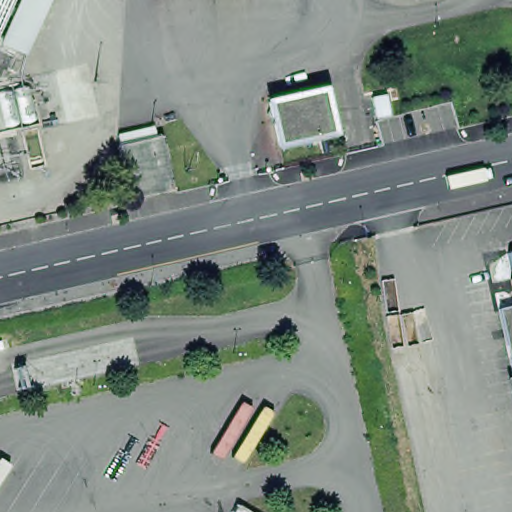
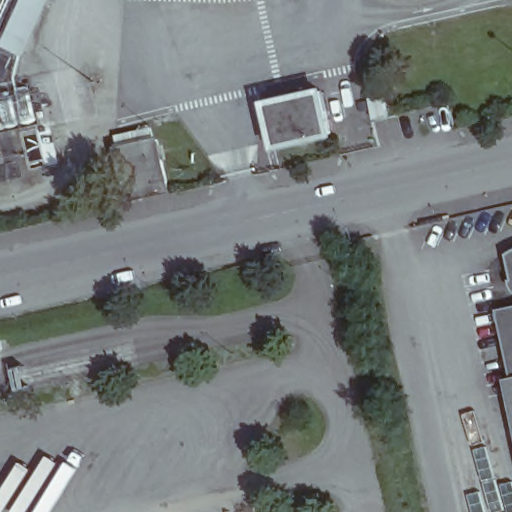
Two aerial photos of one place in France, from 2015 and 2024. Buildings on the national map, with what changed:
unchanged [(0,41),(0,39),(18,0),(51,0),(27,60),(0,41)]
unchanged [(320,96),(330,137),(276,149),(267,107),(320,96)]
unchanged [(158,136),(167,187),(128,196),(116,147),(158,136)]
unchanged [(501,282),(506,279),(501,252),(512,247),(512,294),(504,289),(501,282)]
unchanged [(493,311),(512,307),(512,381),(507,382),(493,311)]

